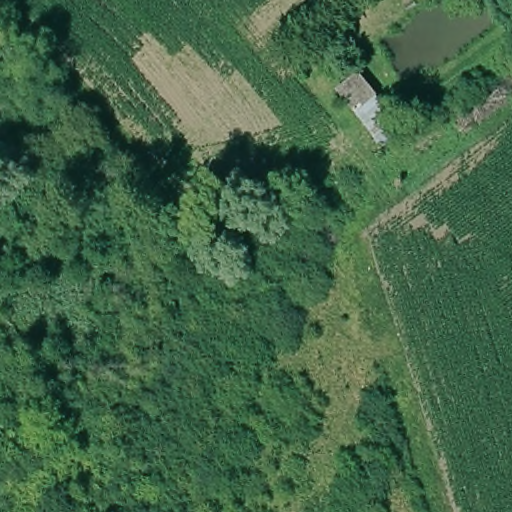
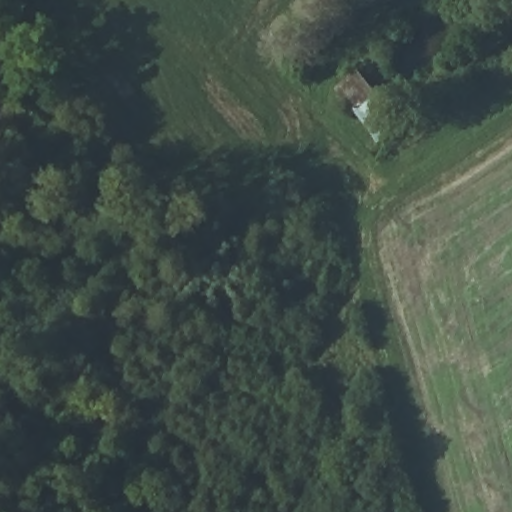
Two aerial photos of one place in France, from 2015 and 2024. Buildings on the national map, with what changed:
unchanged [(351,71),(373,99),(354,118),(330,90),(351,71)]

